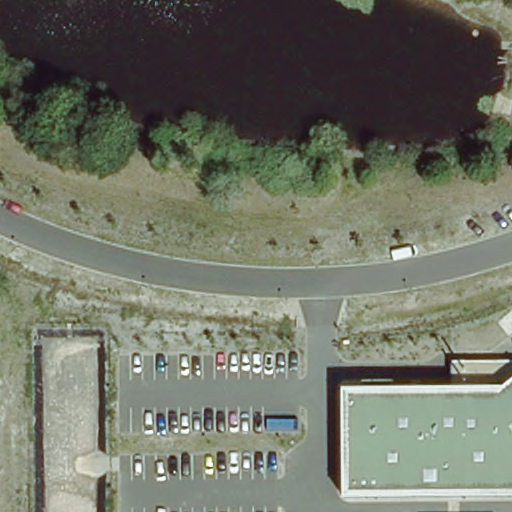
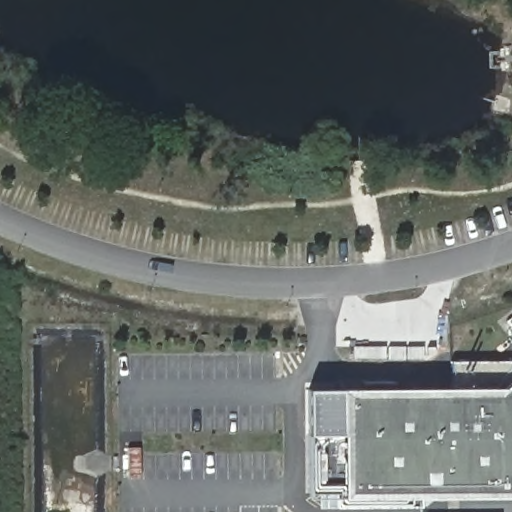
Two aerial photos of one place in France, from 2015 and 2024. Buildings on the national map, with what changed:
unchanged [(346,499),(345,388),(451,386),(452,361),(512,359),(512,497),(346,499)]
new [(345,388),(346,499),(306,499),(306,389),(345,388)]

